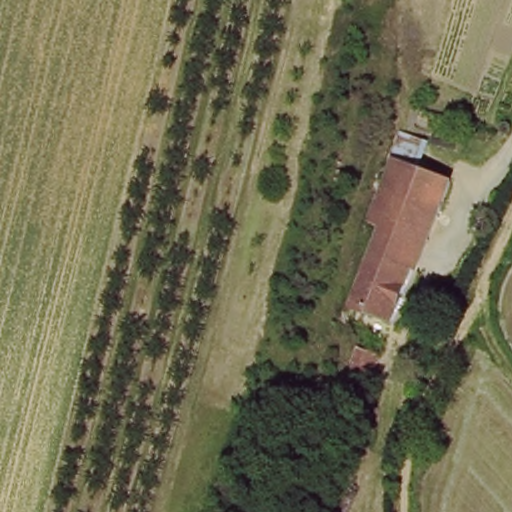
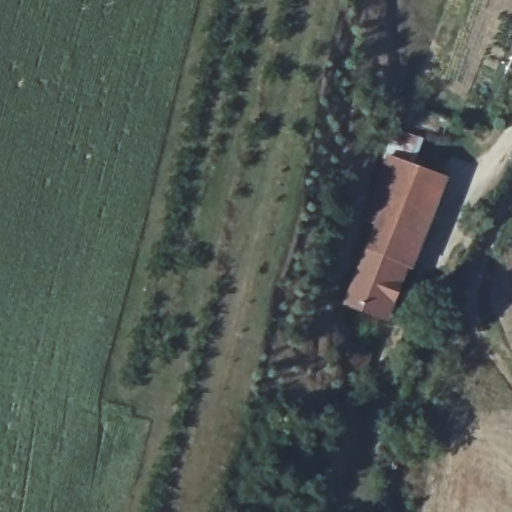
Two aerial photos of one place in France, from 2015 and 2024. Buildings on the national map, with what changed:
unchanged [(373,188),(383,156),(440,177),(424,212),(372,191),(373,188)]
unchanged [(372,191),(424,212),(418,235),(412,233),(400,263),(361,253),(371,223),(363,220),(372,191)]
unchanged [(400,263),(383,318),(344,306),(361,253),(400,263)]

